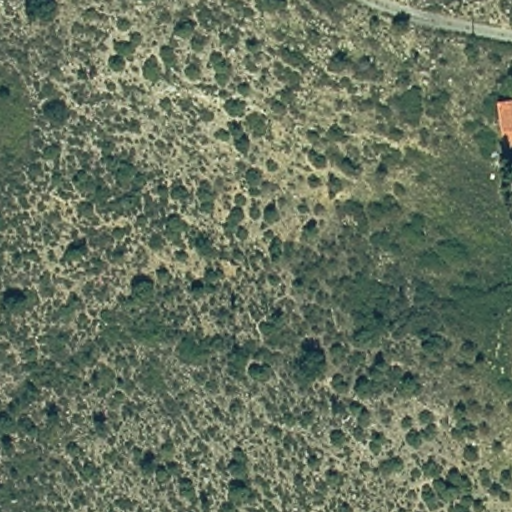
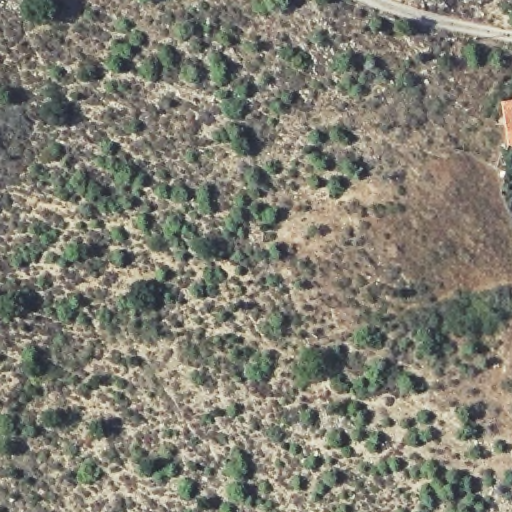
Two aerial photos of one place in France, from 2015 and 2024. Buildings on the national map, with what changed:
unchanged [(498,100),(512,97),(512,149),(509,150),(498,100)]

